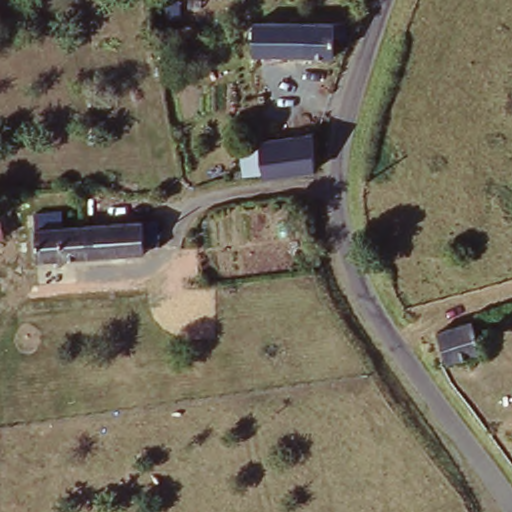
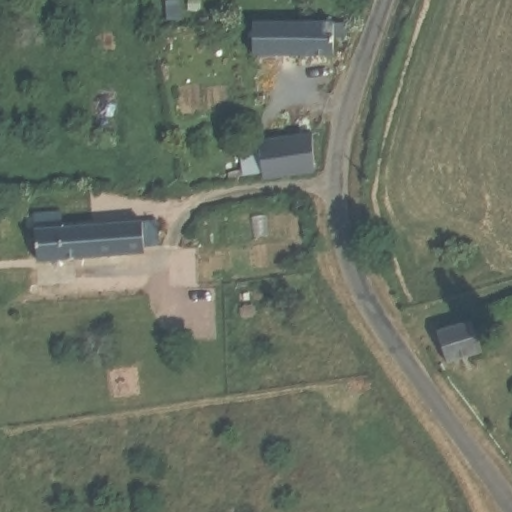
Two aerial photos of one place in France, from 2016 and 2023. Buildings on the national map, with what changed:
unchanged [(343,23),(343,33),(332,34),(333,56),(250,59),(248,25),(343,23)]
unchanged [(244,174),(243,149),(261,148),(309,144),(314,176),(263,182),(262,172),(244,174)]
unchanged [(67,232),(123,229),(146,228),(148,249),(124,249),(124,260),(43,264),(41,219),(66,217),(67,232)]
unchanged [(481,318),(492,358),(447,370),(436,332),(481,318)]

